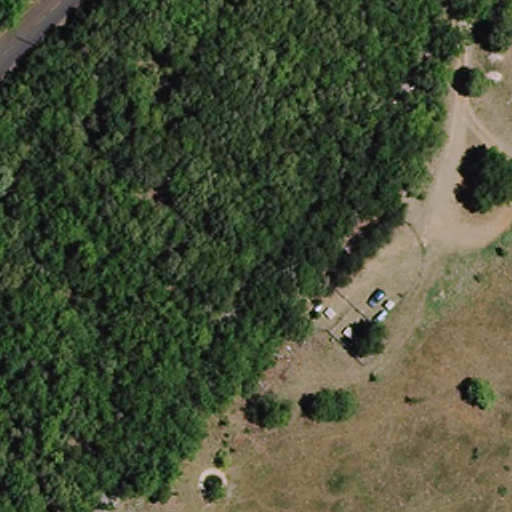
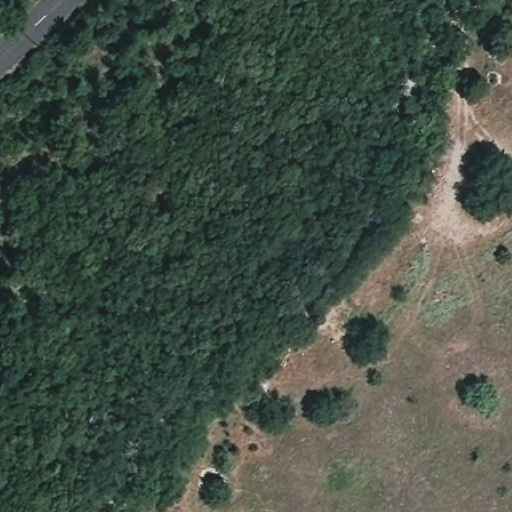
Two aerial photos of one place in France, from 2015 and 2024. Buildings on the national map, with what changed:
unchanged [(360,216),(379,227),(350,270),(328,254),(360,216)]

